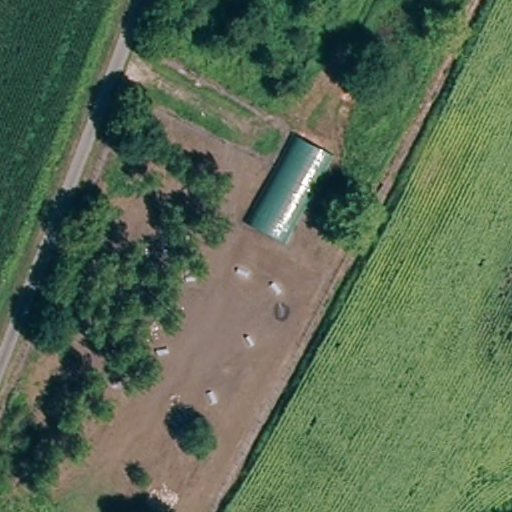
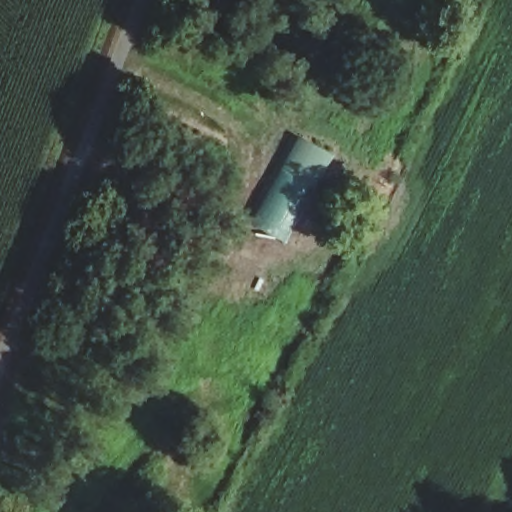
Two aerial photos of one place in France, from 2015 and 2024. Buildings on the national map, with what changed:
unchanged [(295,136),(330,155),(281,242),(246,223),(295,136)]

